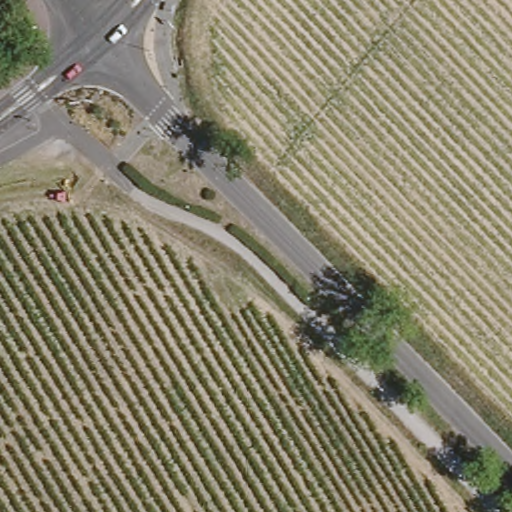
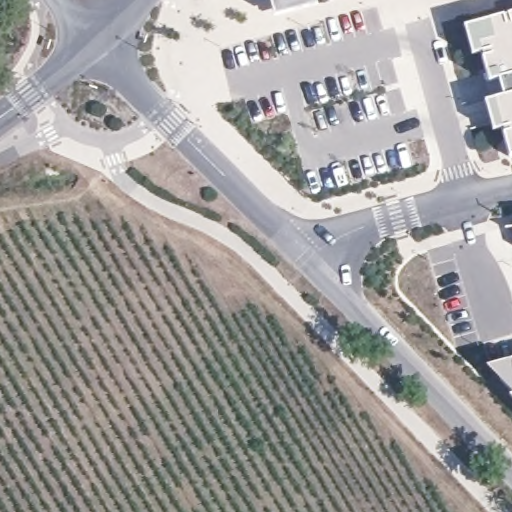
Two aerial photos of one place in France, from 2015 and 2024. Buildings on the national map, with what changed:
new [(296,0),(337,0),(274,17),(271,0),(282,0),(283,3),(296,0)]
new [(282,0),(296,0),(283,3),(282,0)]
new [(481,54),(472,24),(512,13),(512,75),(489,81),(480,84),(472,56),(481,54)]
new [(502,129),(492,131),(484,101),(493,99),(512,94),(512,156),(509,157),(502,129)]
new [(512,225),(512,229),(511,225),(512,225)]
new [(512,366),(512,394),(495,375),(512,366)]

